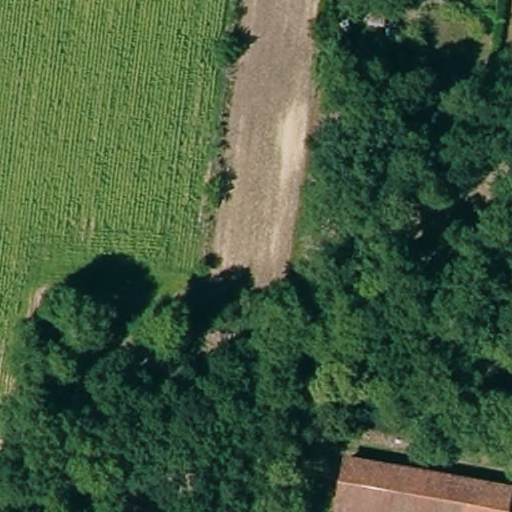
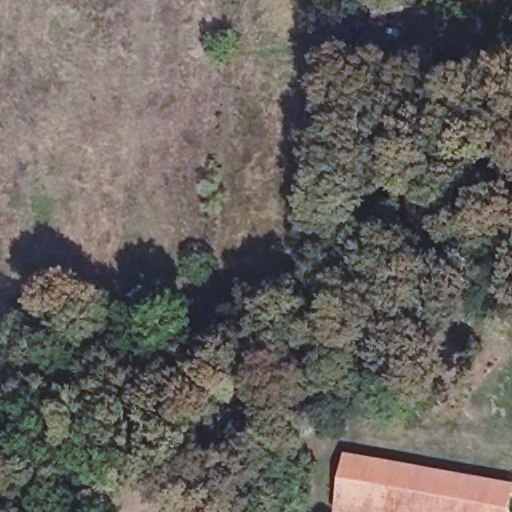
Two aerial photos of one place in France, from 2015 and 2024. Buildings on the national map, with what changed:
unchanged [(335,512),(349,443),(512,476),(512,512),(335,512)]

